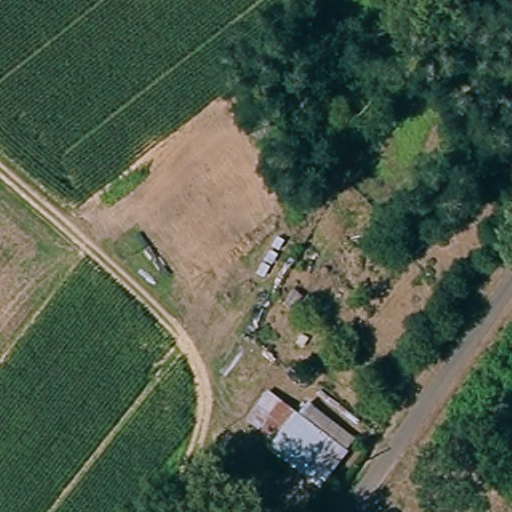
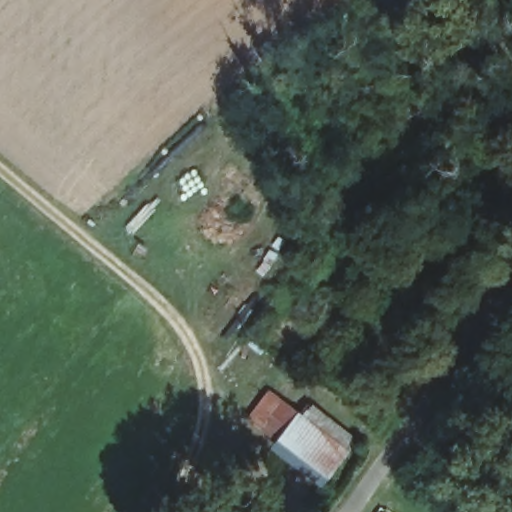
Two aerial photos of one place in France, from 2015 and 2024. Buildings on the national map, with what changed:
unchanged [(289,408),(301,396),(357,438),(312,490),(267,453),(274,445),(246,422),(265,389),(289,408)]

